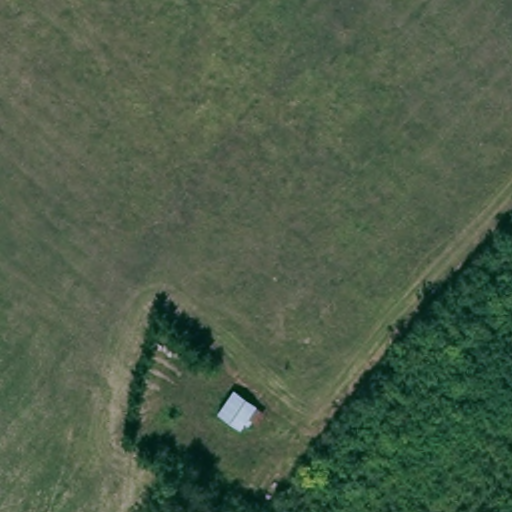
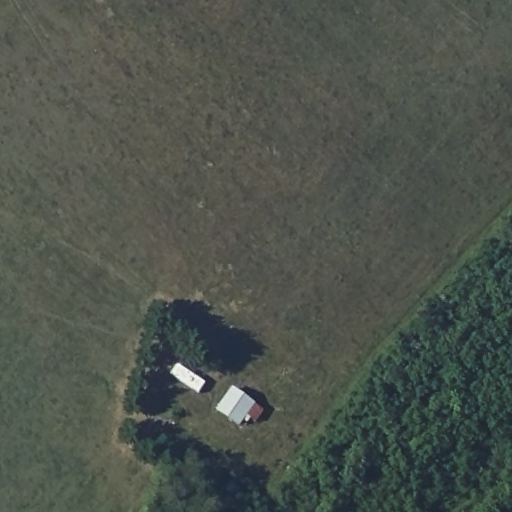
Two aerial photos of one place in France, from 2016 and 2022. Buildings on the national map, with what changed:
unchanged [(253,423),(244,416),(235,426),(213,406),(231,381),(266,408),(253,423)]

